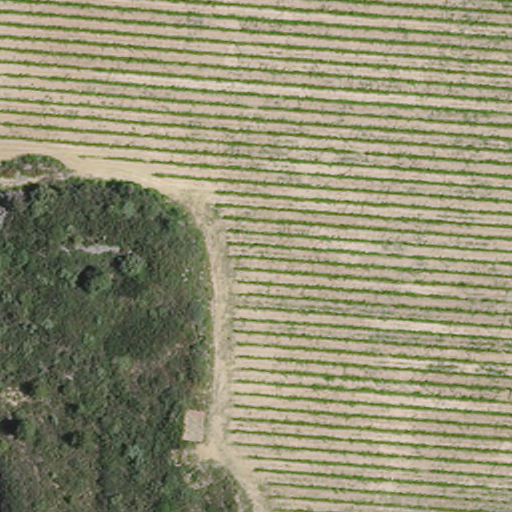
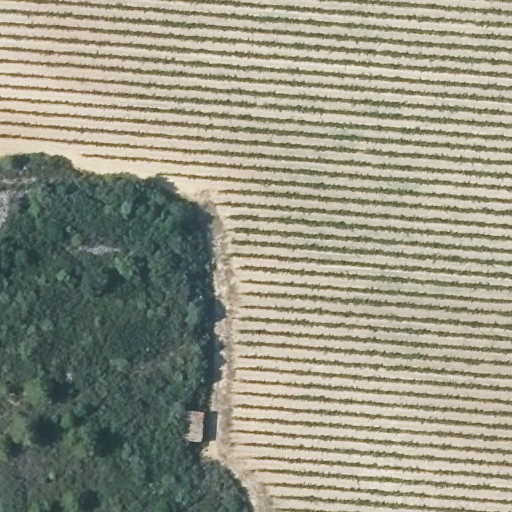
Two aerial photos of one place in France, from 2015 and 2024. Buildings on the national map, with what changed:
unchanged [(203,418),(200,448),(180,446),(182,417),(203,418)]

